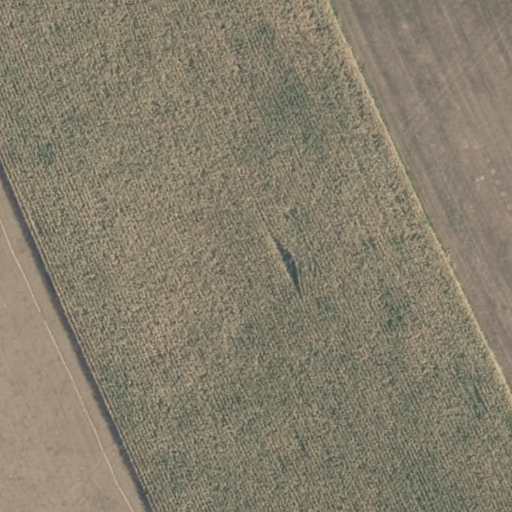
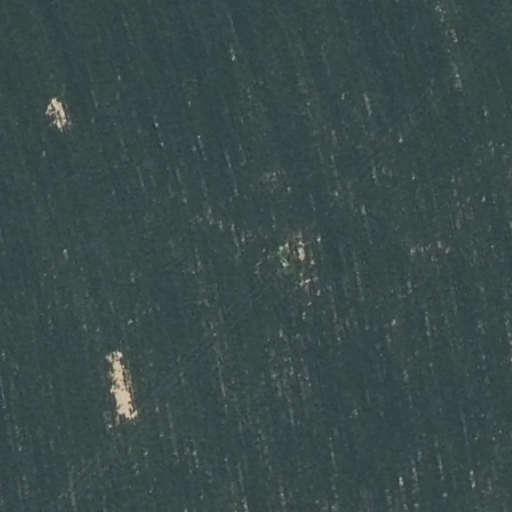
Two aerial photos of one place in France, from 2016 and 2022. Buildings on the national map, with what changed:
[]

